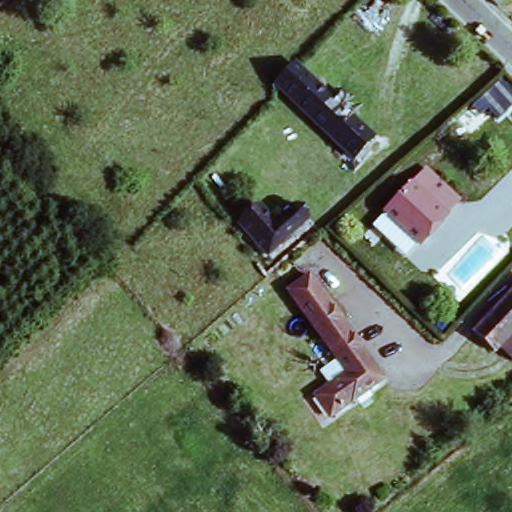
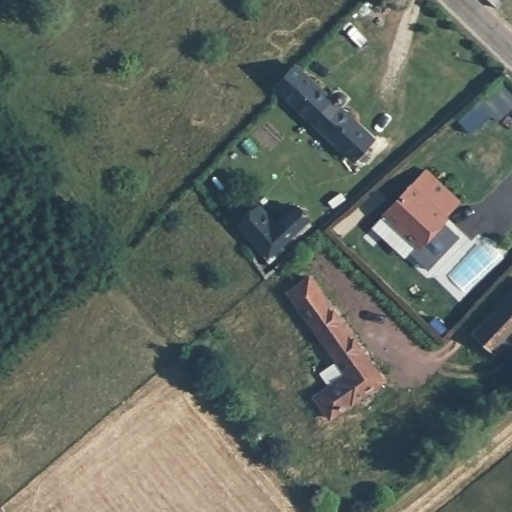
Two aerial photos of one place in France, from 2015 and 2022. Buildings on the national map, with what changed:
unchanged [(494,0),(502,0),(499,4),(494,0)]
unchanged [(354,143),(360,149),(350,159),(277,87),(271,82),(287,63),(364,133),(354,143)]
unchanged [(419,247),(385,214),(424,172),(459,204),(419,247)]
unchanged [(237,223),(257,205),(274,222),(291,206),(304,220),(267,254),(237,223)]
unchanged [(324,364),(312,346),(320,339),(287,288),(309,273),(382,376),(329,413),(316,394),(345,375),(333,358),(324,364)]
unchanged [(466,335),(512,286),(512,327),(487,354),(466,335)]

